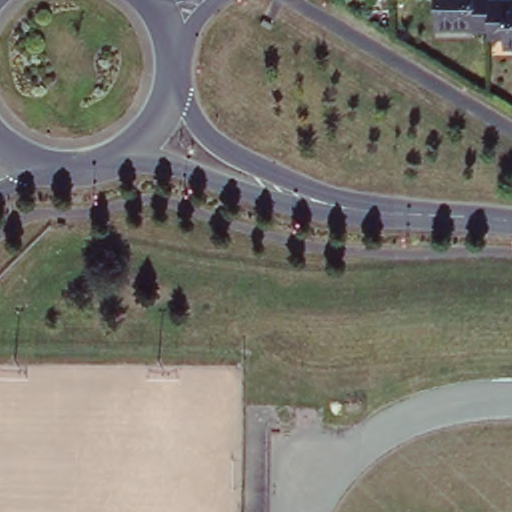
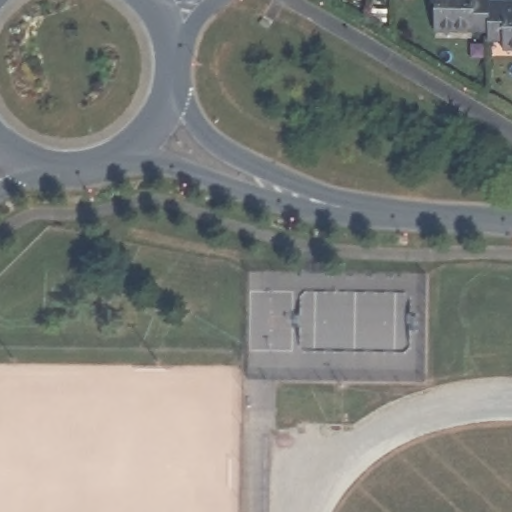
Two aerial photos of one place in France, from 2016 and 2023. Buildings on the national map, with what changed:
unchanged [(439,0),(492,0),(492,30),(438,29),(439,0)]
unchanged [(492,30),(492,0),(512,0),(512,42),(492,41),(492,30)]

